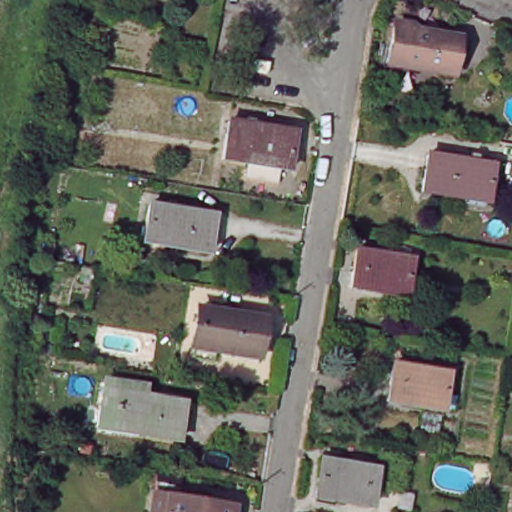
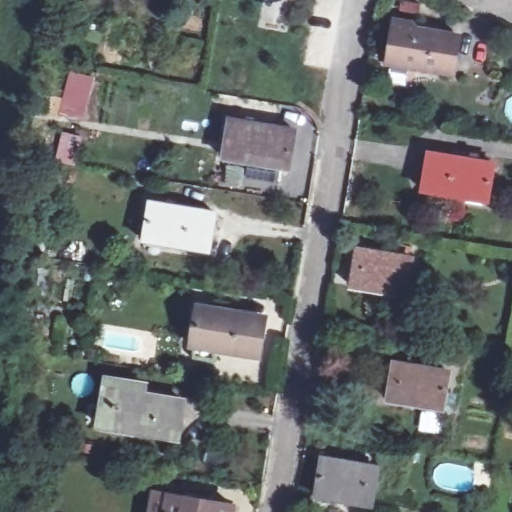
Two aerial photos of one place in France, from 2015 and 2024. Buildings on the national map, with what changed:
unchanged [(397,26),(459,37),(454,73),(390,62),(397,26)]
unchanged [(225,120),(289,131),(282,167),(220,157),(225,120)]
unchanged [(430,155),(492,165),(486,201),(423,190),(430,155)]
unchanged [(151,203),(214,214),(208,250),(145,240),(151,203)]
unchanged [(359,250),(412,259),(405,295),(352,285),(359,250)]
unchanged [(200,312),(262,322),(256,358),(194,347),(200,312)]
unchanged [(395,363),(447,372),(442,408),(389,398),(395,363)]
unchanged [(105,377),(145,384),(144,395),(182,401),(177,437),(97,424),(105,377)]
unchanged [(324,458),(375,467),(370,504),(317,495),(324,458)]
unchanged [(160,480),(181,484),(179,497),(159,493),(160,480)]
unchanged [(232,510),(231,512),(151,512),(154,496),(232,510)]

